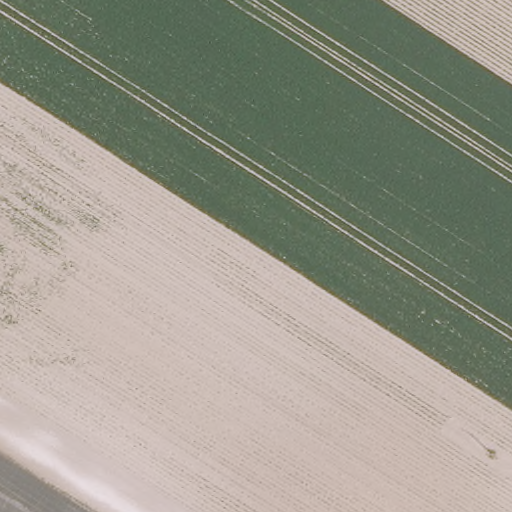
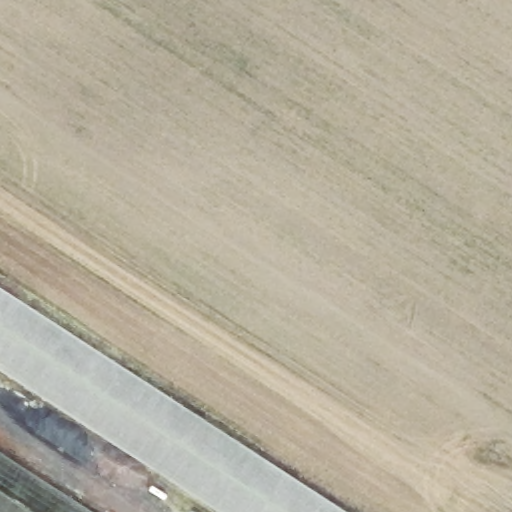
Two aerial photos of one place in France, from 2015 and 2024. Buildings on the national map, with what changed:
new [(337,512),(218,512),(0,371),(0,294),(337,512)]
unchanged [(101,512),(0,512),(0,446),(101,512)]

